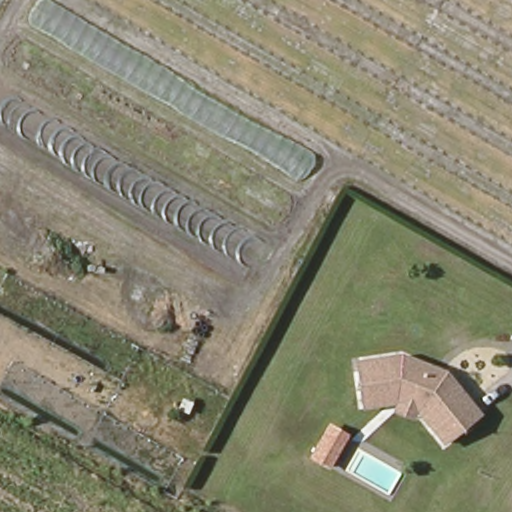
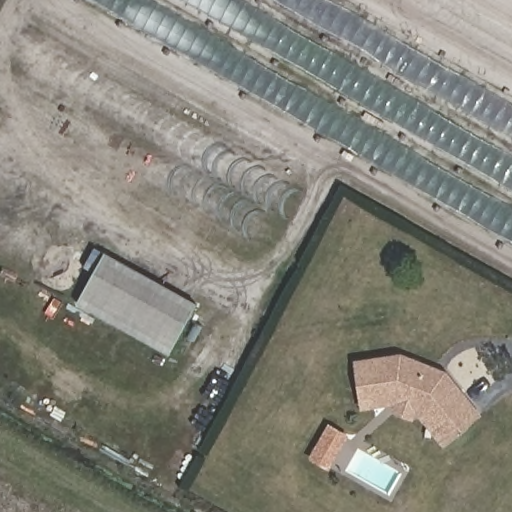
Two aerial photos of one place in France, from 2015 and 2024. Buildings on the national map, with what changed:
new [(90,0),(332,0),(512,103),(512,242),(90,0)]
demolished [(487,0),(512,0),(512,14),(487,0)]
new [(169,356),(77,304),(106,252),(198,302),(169,356)]
unchanged [(402,356),(446,374),(483,415),(442,445),(418,415),(416,422),(392,414),(394,406),(364,410),(357,361),(402,356)]

